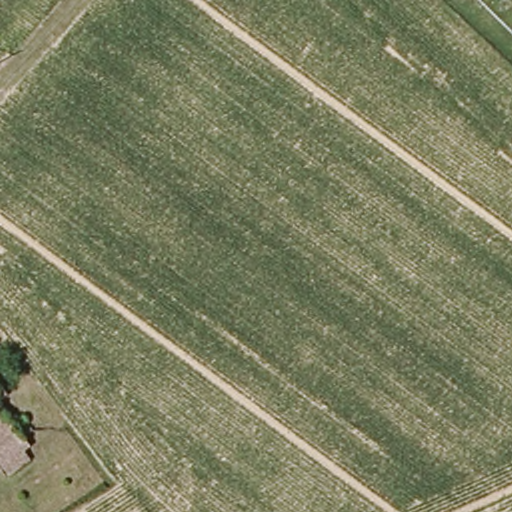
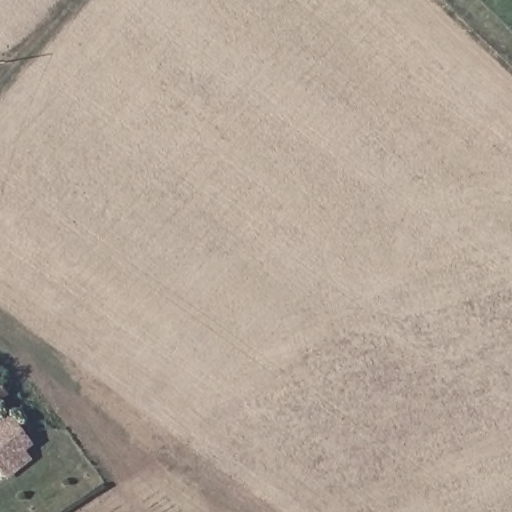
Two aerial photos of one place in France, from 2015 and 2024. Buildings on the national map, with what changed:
unchanged [(0,402),(0,394),(3,399),(0,402)]
unchanged [(0,412),(14,427),(21,421),(33,435),(26,443),(32,449),(26,455),(31,461),(10,478),(0,466),(0,412)]

